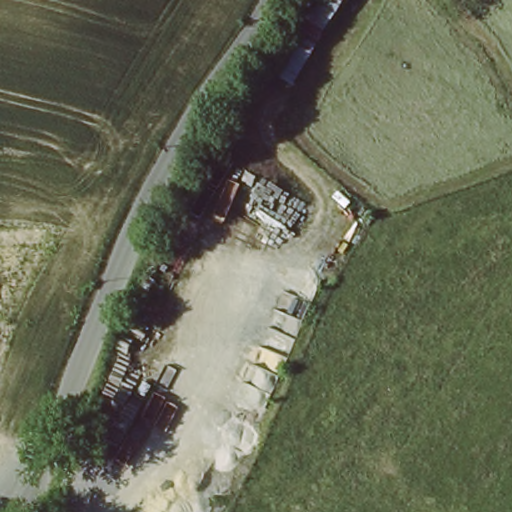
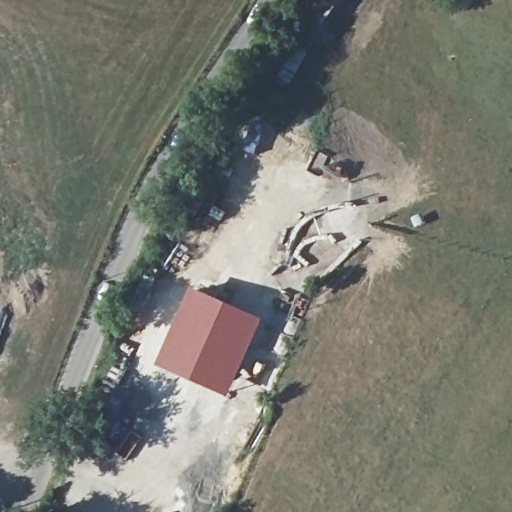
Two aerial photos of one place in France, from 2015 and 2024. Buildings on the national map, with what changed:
unchanged [(304,0),(345,0),(292,89),(260,66),(304,0)]
new [(195,289),(265,319),(228,398),(158,366),(195,289)]

